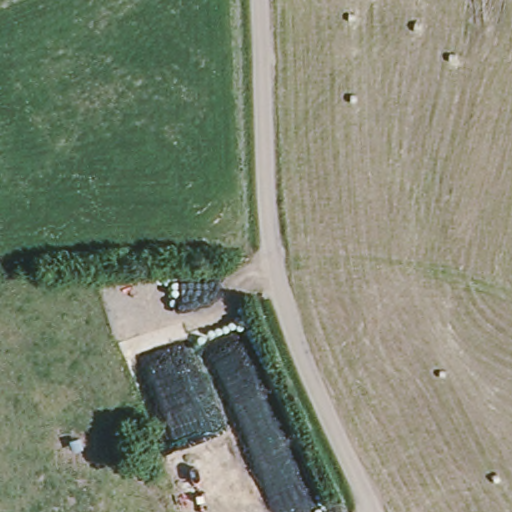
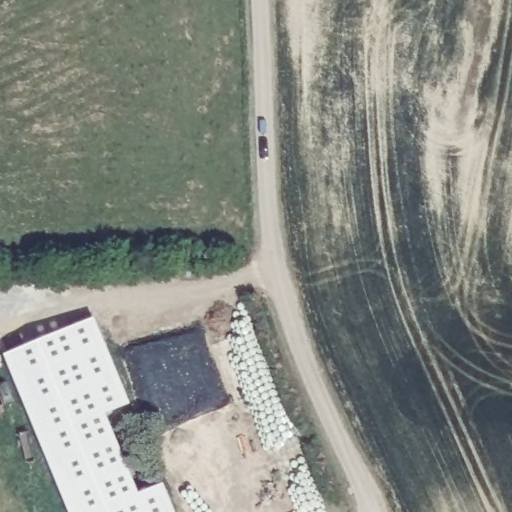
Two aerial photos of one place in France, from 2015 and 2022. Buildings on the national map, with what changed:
new [(130,402),(105,413),(139,492),(163,482),(174,512),(69,512),(4,353),(94,318),(130,402)]

